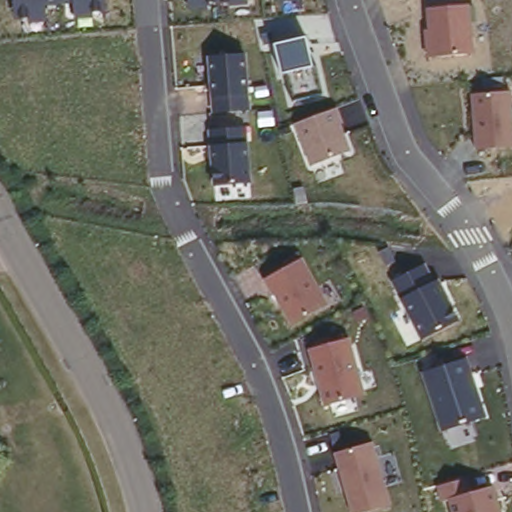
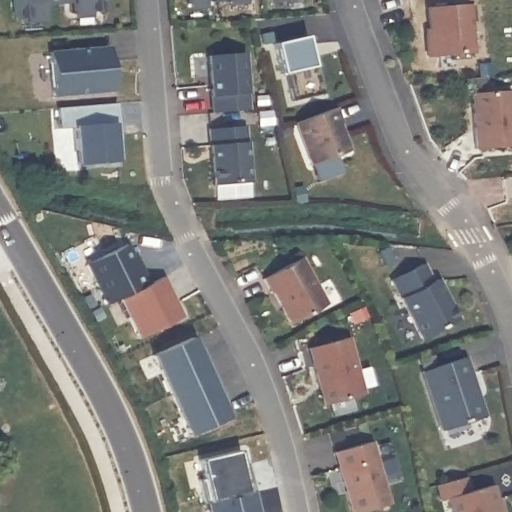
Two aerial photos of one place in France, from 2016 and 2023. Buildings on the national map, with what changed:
unchanged [(29,16),(14,18),(13,0),(105,0),(105,10),(91,11),(92,19),(74,20),(74,3),(45,6),(46,24),(29,23),(29,16)]
unchanged [(187,0),(248,0),(248,5),(229,6),(228,1),(206,3),(206,10),(187,11),(187,0)]
unchanged [(277,2),(277,0),(295,0),(277,2)]
unchanged [(423,29),(428,28),(426,9),(469,4),(474,55),(425,57),(423,29)]
unchanged [(285,73),(280,74),(274,45),(307,37),(314,67),(321,94),(291,100),(285,73)]
new [(112,92),(54,98),(51,53),(108,48),(112,92)]
unchanged [(208,58),(246,56),(249,111),(211,112),(208,58)]
unchanged [(469,94),(511,90),(512,97),(512,149),(475,150),(469,94)]
new [(120,140),(116,141),(114,125),(117,162),(79,166),(76,128),(61,130),(59,109),(117,104),(119,125),(120,140)]
unchanged [(293,123),(337,108),(345,125),(341,128),(349,152),(311,166),(293,123)]
unchanged [(207,131),(247,128),(250,182),(211,185),(207,131)]
new [(147,286),(164,279),(180,317),(171,320),(175,328),(140,340),(120,299),(108,304),(87,264),(126,244),(147,286)]
unchanged [(263,278),(303,257),(328,304),(288,324),(263,278)]
unchanged [(391,280),(427,263),(457,323),(420,338),(391,280)]
unchanged [(364,396),(327,406),(309,345),(346,333),(364,396)]
new [(151,354),(192,335),(229,416),(189,434),(151,354)]
unchanged [(420,373),(468,358),(486,418),(439,431),(420,373)]
unchanged [(374,442),(392,506),(365,512),(349,512),(332,453),(374,442)]
new [(255,493),(206,505),(200,481),(205,480),(201,461),(240,452),(247,478),(251,477),(255,493)]
new [(251,477),(247,478),(244,467),(249,465),(251,477)]
unchanged [(440,501),(435,485),(470,475),(474,491),(494,485),(501,512),(451,512),(447,499),(440,501)]
new [(255,493),(260,512),(208,512),(206,505),(255,493)]

